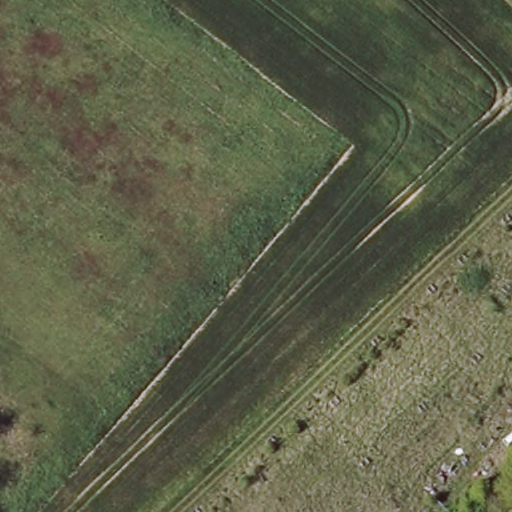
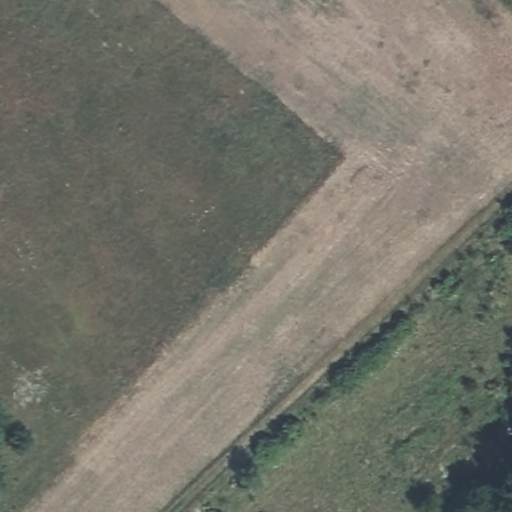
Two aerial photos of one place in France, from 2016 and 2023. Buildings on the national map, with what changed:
[]

